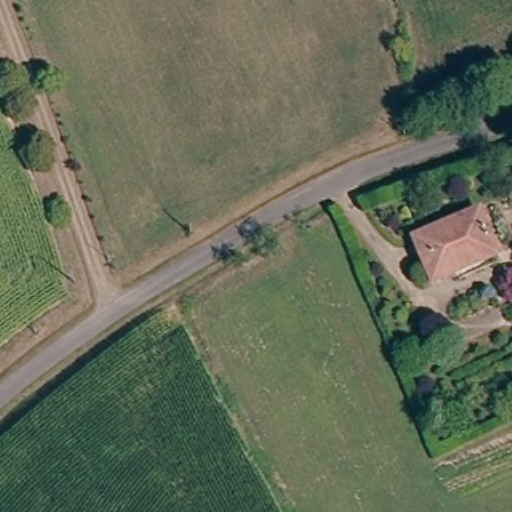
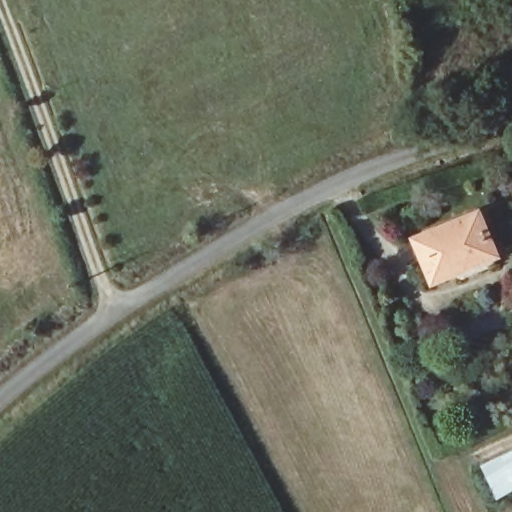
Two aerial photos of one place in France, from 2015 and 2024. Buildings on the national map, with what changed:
unchanged [(481,211),(500,255),(434,284),(415,240),(481,211)]
new [(500,499),(483,466),(512,452),(512,492),(500,499)]

